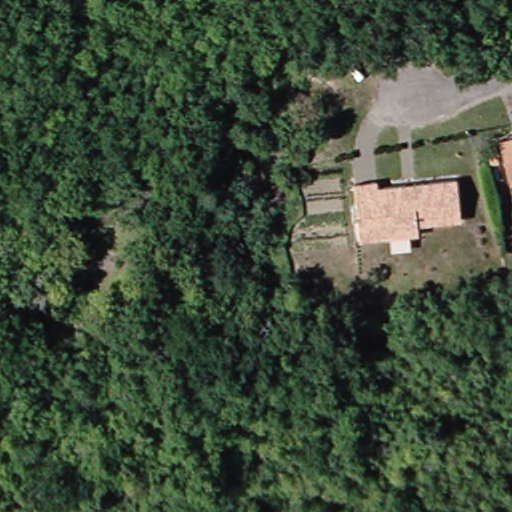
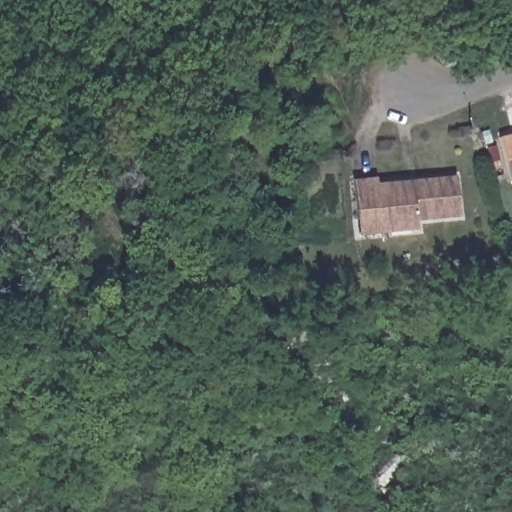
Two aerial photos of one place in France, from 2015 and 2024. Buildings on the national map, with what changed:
unchanged [(479,140),(512,133),(512,173),(487,179),(479,140)]
unchanged [(349,218),(342,181),(366,176),(368,186),(449,170),(456,212),(411,219),(413,227),(378,235),(353,240),(349,218)]

